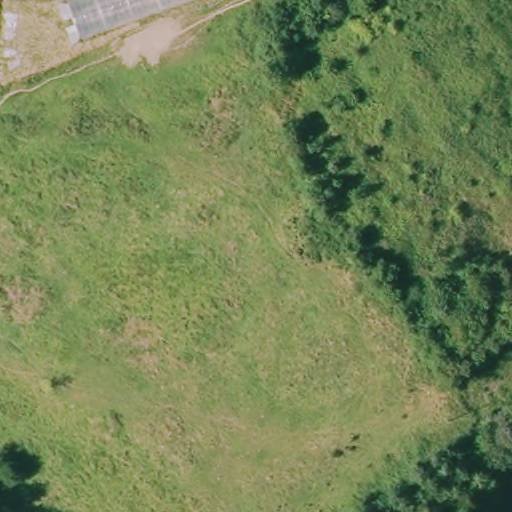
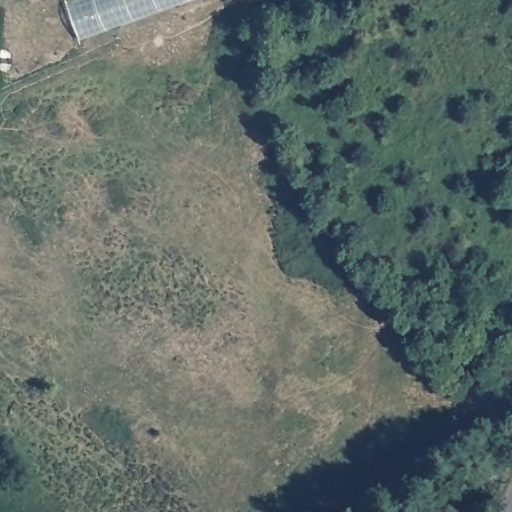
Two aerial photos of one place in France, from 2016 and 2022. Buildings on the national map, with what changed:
unchanged [(77,0),(198,0),(80,41),(69,3),(77,0)]

